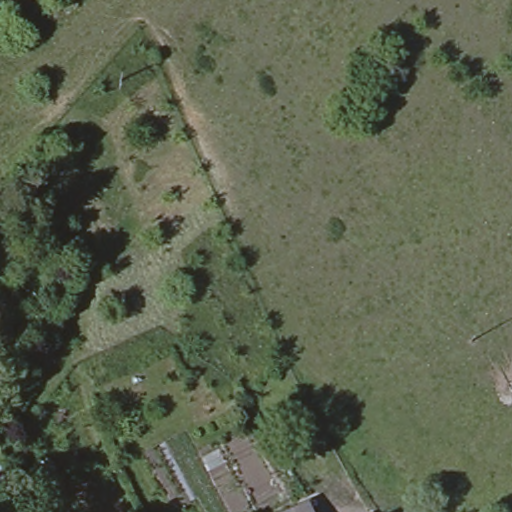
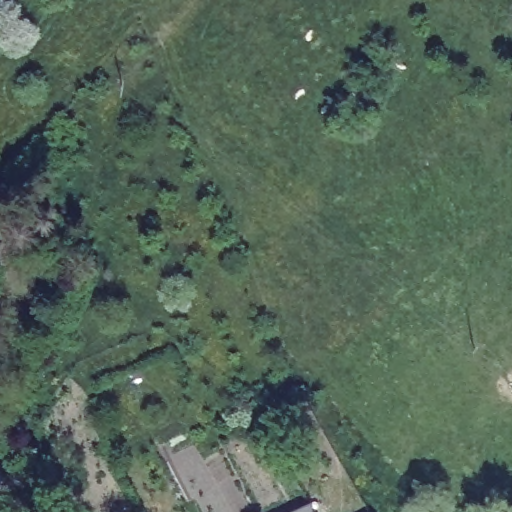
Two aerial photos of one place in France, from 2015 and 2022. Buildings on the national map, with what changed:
unchanged [(5,472),(0,475),(0,464),(5,472)]
unchanged [(315,512),(276,512),(308,497),(315,512)]
unchanged [(371,512),(366,512),(370,510),(371,512)]

